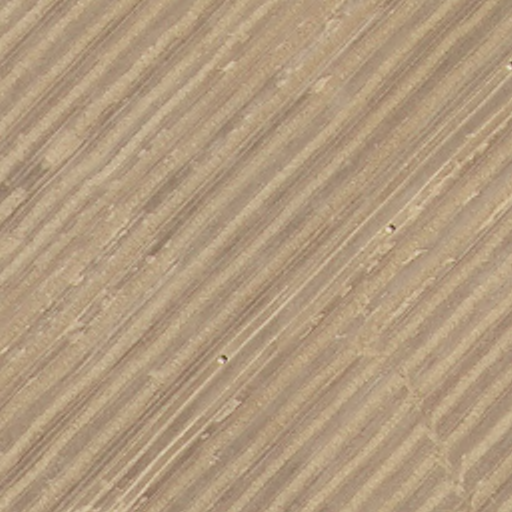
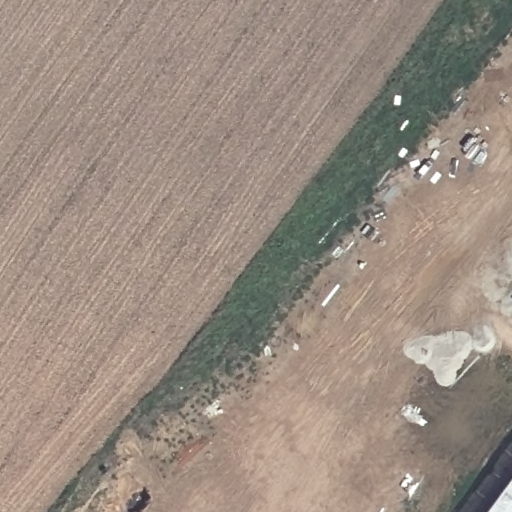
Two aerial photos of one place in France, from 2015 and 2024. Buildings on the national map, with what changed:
new [(512,475),(512,512),(484,512),(512,475)]

